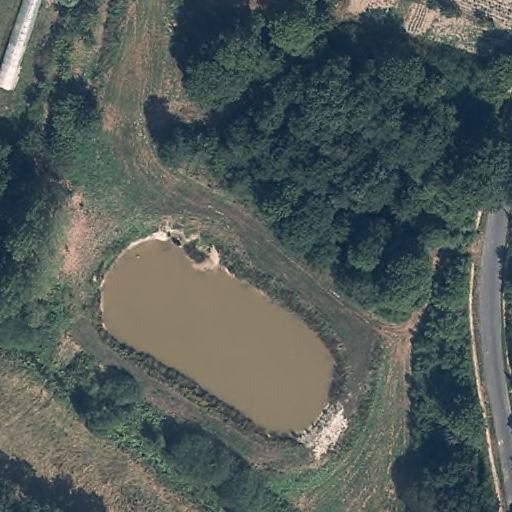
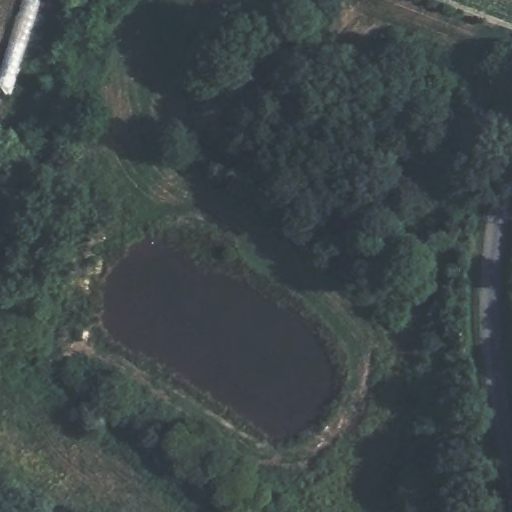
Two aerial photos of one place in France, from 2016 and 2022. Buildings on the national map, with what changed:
[]

